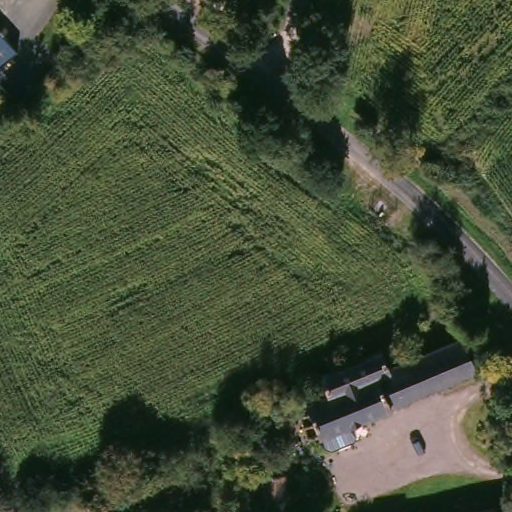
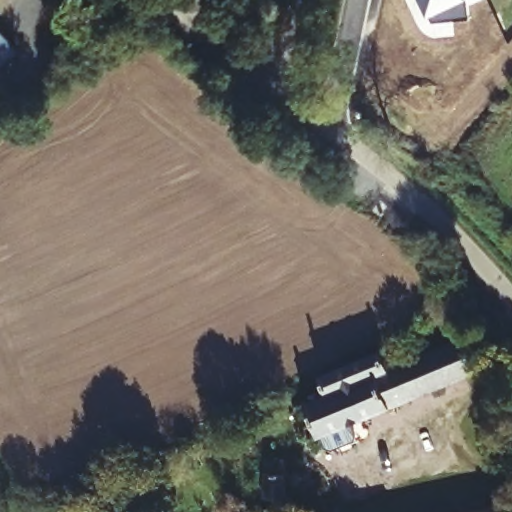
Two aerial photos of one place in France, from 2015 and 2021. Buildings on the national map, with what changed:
new [(468,19),(431,24),(420,0),(478,0),(467,5),(468,19)]
unchanged [(17,51),(0,65),(0,32),(17,51)]
unchanged [(299,406),(334,392),(326,375),(347,367),(387,349),(395,365),(466,335),(480,369),(312,441),(299,406)]
unchanged [(264,475),(286,476),(286,502),(264,499),(264,475)]
unchanged [(500,504),(501,512),(465,512),(500,504)]

